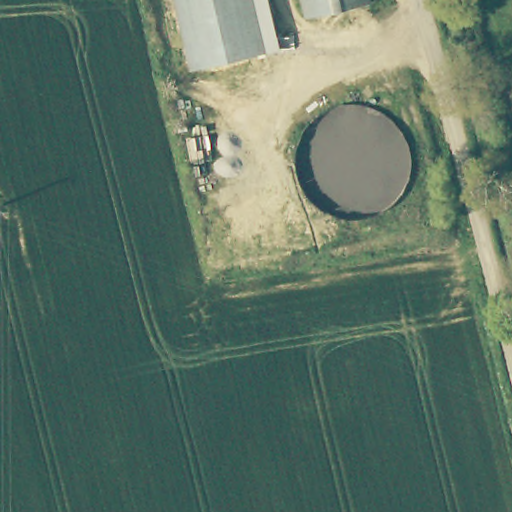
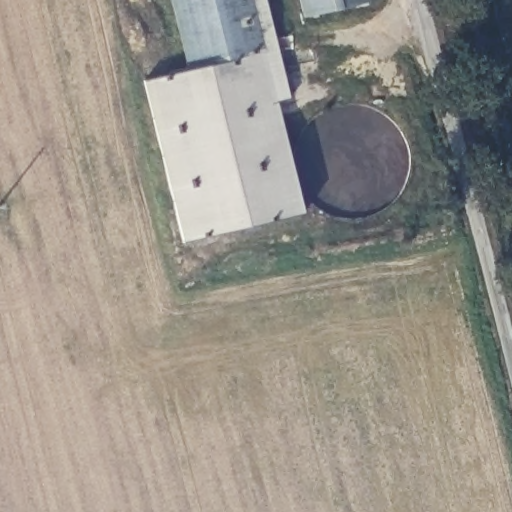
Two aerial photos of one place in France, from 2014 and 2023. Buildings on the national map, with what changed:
new [(267,63),(252,0),(269,0),(293,98),(279,101),(309,213),(186,244),(148,80),(188,71),(190,80),(267,63)]
unchanged [(190,80),(171,0),(252,0),(267,63),(190,80)]
unchanged [(312,20),(307,0),(372,0),(373,5),(312,20)]

